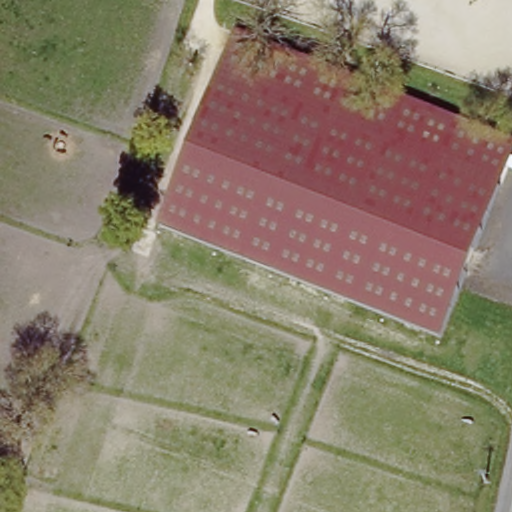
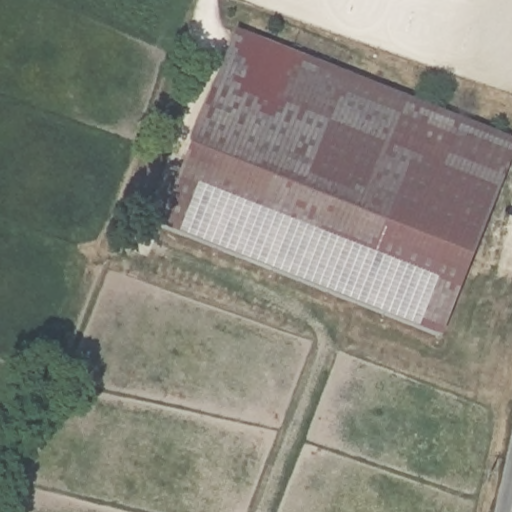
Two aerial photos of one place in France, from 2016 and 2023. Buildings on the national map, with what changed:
unchanged [(236,31),(512,139),(512,158),(441,338),(159,228),(236,31)]

